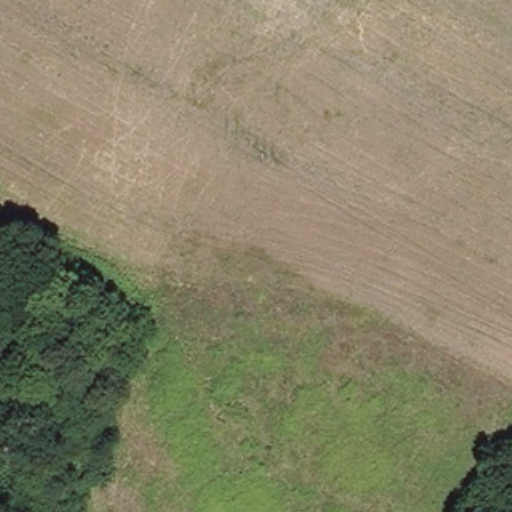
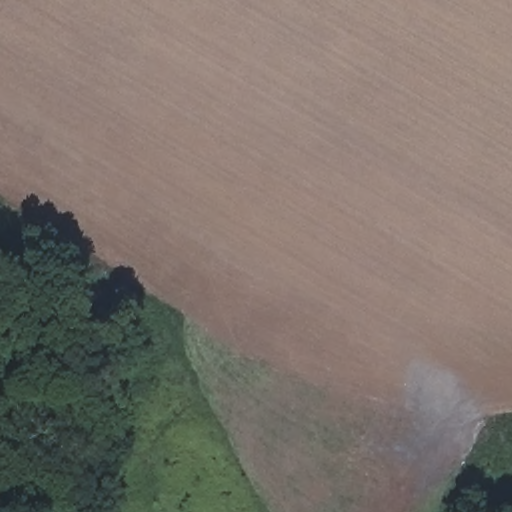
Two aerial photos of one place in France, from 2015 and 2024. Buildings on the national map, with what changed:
[]

